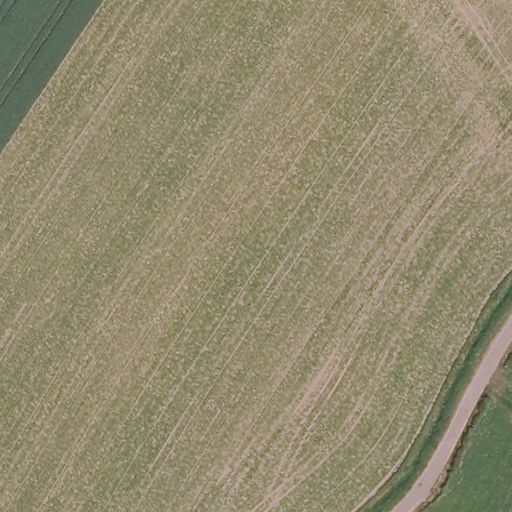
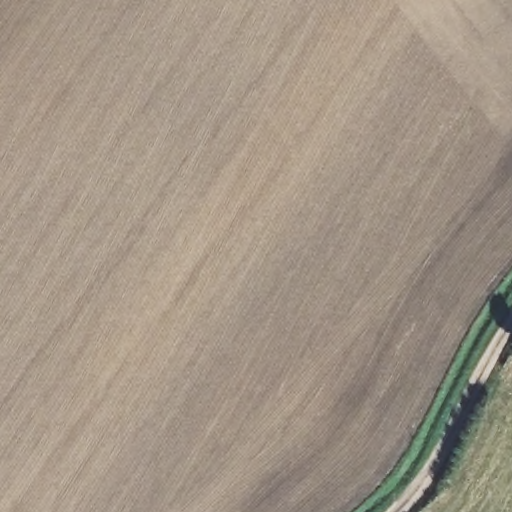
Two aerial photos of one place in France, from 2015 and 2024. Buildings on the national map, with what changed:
[]

